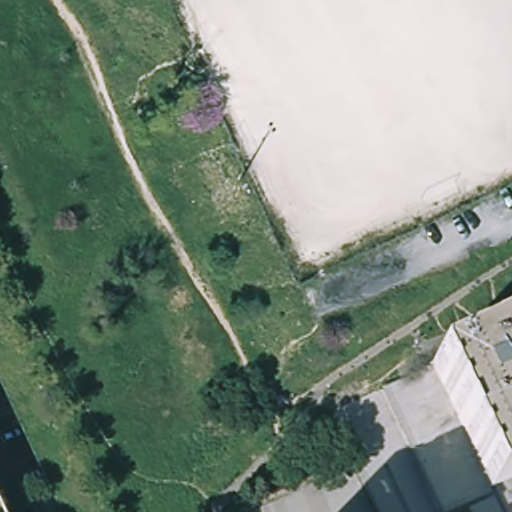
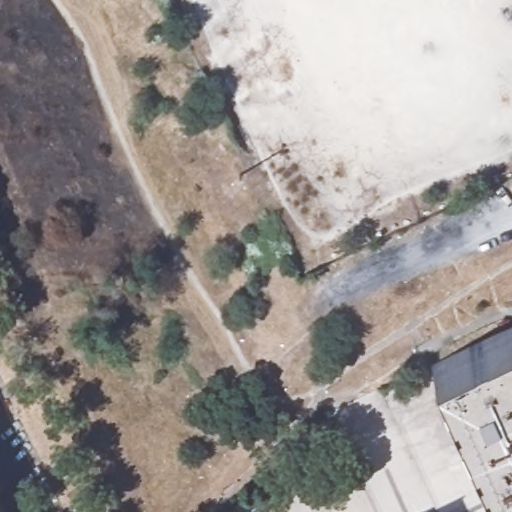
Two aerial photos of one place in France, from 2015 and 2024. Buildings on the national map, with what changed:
unchanged [(512,482),(493,491),(432,364),(512,327),(512,482)]
unchanged [(329,410),(432,364),(493,491),(512,482),(512,512),(243,512),(353,462),(329,410)]

